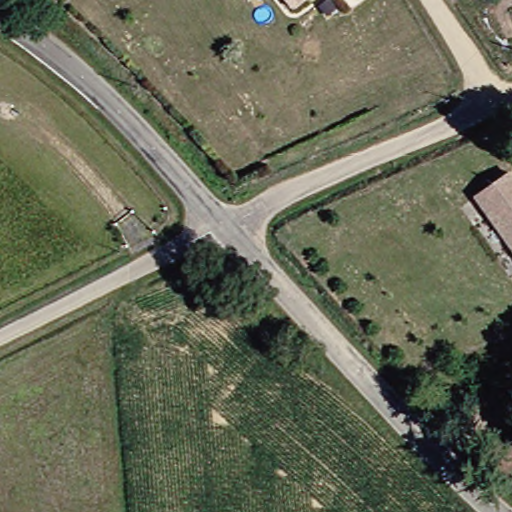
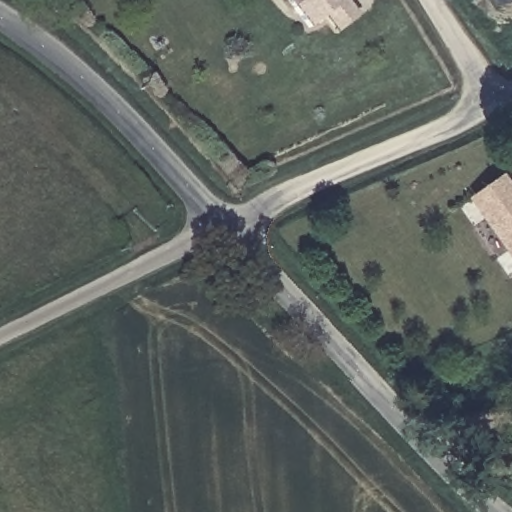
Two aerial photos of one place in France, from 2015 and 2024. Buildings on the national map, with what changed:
unchanged [(285,0),(301,0),(290,8),(285,0)]
new [(324,16),(308,30),(290,8),(301,0),(345,0),(359,16),(336,33),(324,16)]
unchanged [(475,194),(507,171),(512,177),(512,245),(475,194)]

